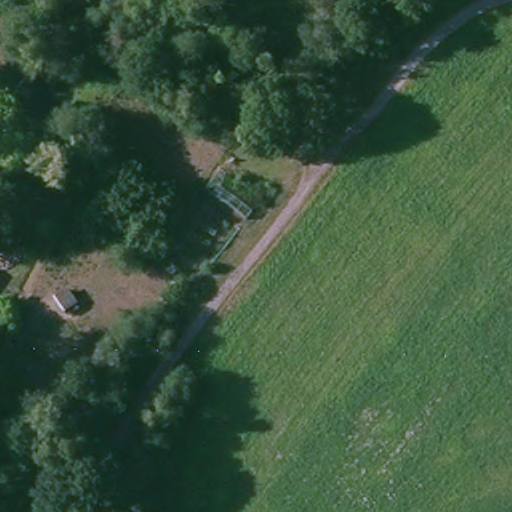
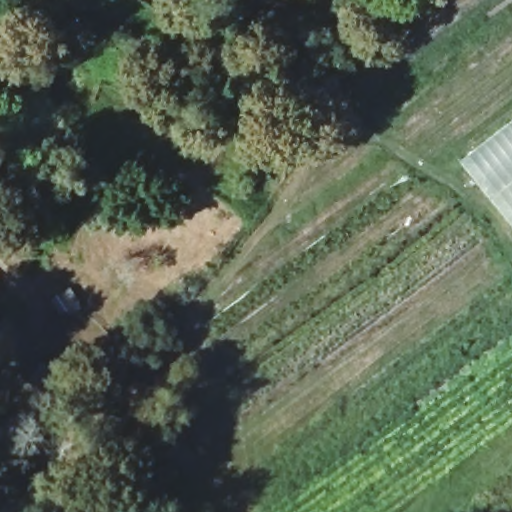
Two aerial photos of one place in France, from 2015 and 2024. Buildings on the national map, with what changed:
new [(512,121),(512,227),(461,160),(512,121)]
unchanged [(1,272),(0,273),(0,271),(1,272)]

